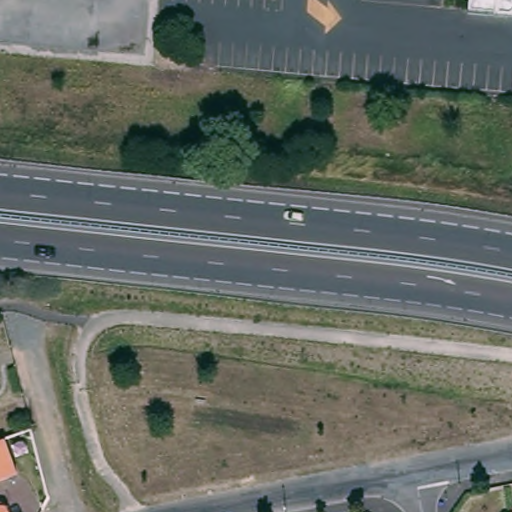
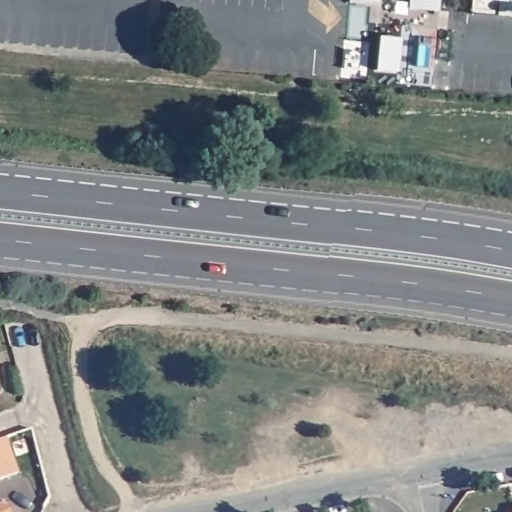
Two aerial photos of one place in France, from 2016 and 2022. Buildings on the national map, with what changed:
unchanged [(474,10),(475,0),(512,0),(512,14),(474,10)]
unchanged [(209,125),(208,136),(197,135),(199,123),(209,125)]
unchanged [(20,469),(0,475),(0,436),(8,434),(20,469)]
unchanged [(10,506),(13,512),(0,512),(0,505),(6,506),(10,506)]

